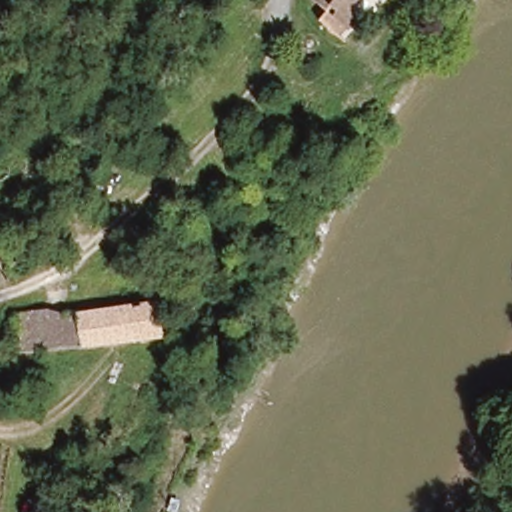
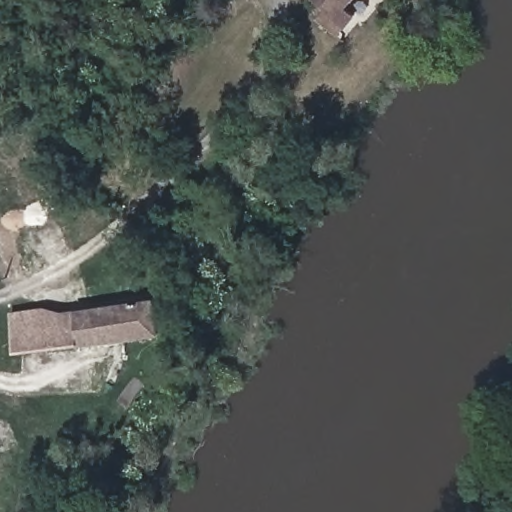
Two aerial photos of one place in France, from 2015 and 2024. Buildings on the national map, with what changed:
unchanged [(355,17),(337,37),(317,18),(326,8),(317,0),(352,0),(345,7),(355,17)]
unchanged [(44,309),(85,309),(156,300),(160,329),(17,354),(10,315),(44,309)]

